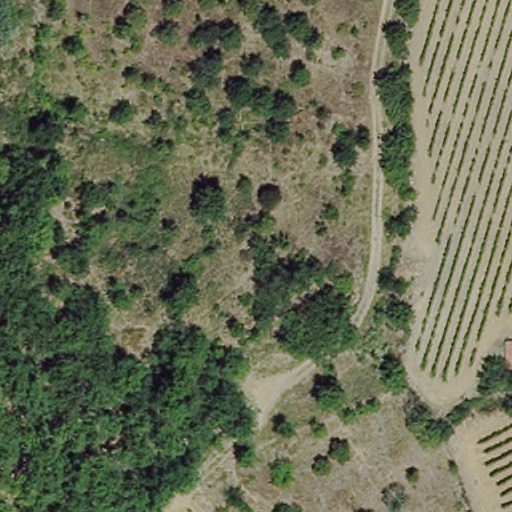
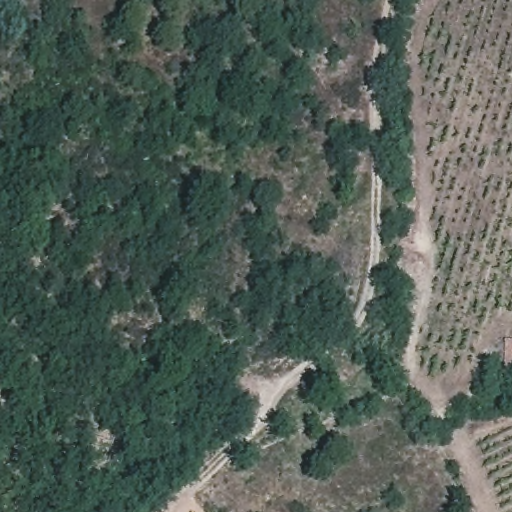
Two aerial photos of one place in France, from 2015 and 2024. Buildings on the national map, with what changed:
unchanged [(512,372),(510,372),(509,362),(495,361),(494,345),(512,344),(512,372)]

